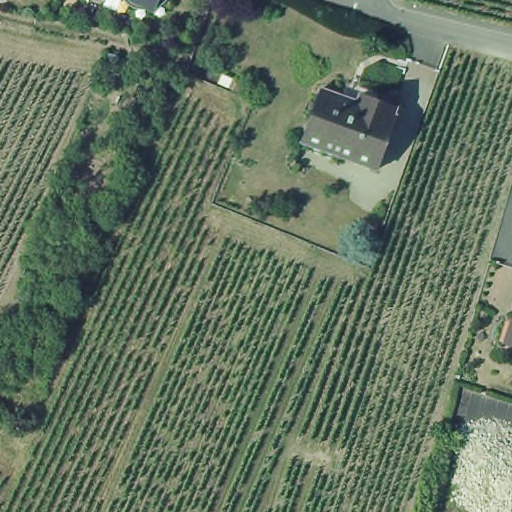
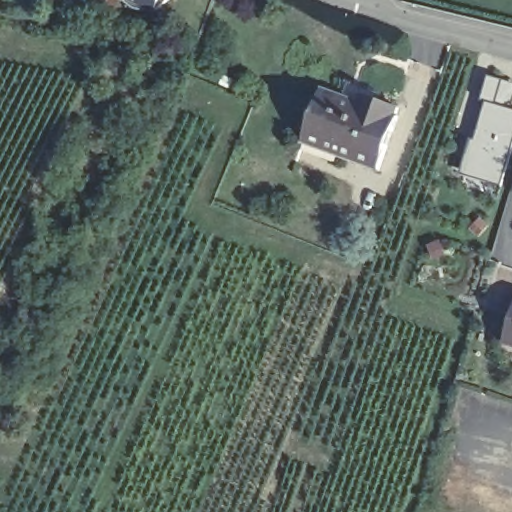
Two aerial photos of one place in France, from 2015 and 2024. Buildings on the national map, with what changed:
unchanged [(168,0),(166,4),(162,6),(157,9),(152,10),(148,10),(143,10),(138,10),(135,8),(130,6),(127,2),(124,0),(169,0),(168,0)]
new [(470,140),(470,139),(475,140),(486,103),(480,101),(488,76),(504,80),(512,83),(512,110),(512,151),(501,187),(500,187),(501,182),(465,171),(474,141),(470,140)]
unchanged [(387,124),(391,125),(373,173),(296,145),(316,90),(351,102),(356,89),(375,95),(370,110),(390,116),(387,124)]
unchanged [(495,352),(510,307),(512,308),(512,358),(495,352)]

